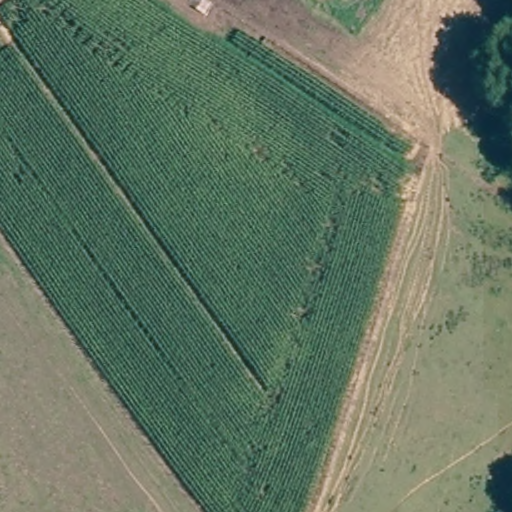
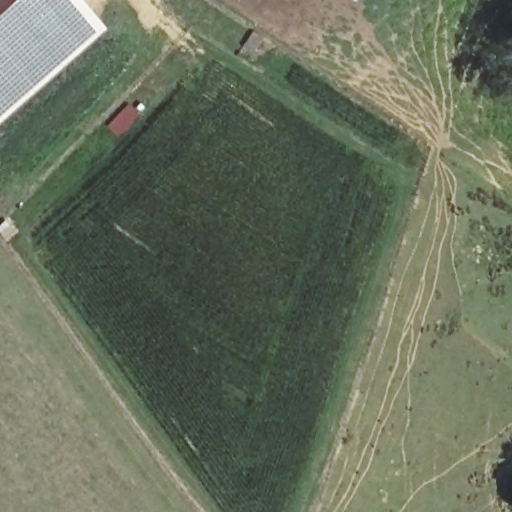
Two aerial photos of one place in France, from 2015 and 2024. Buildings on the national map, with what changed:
new [(77,0),(101,28),(0,120),(0,0),(77,0)]
new [(129,103),(140,113),(118,137),(106,126),(129,103)]

